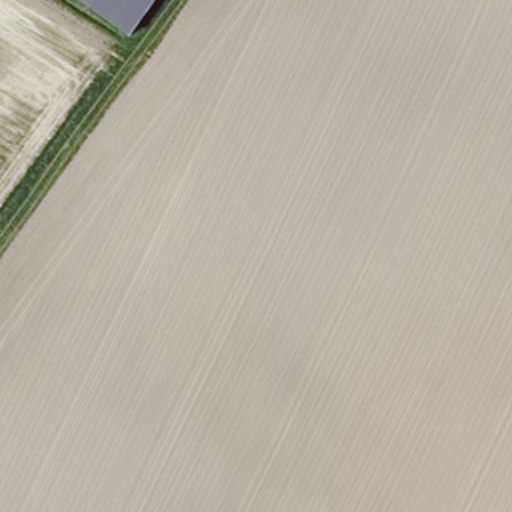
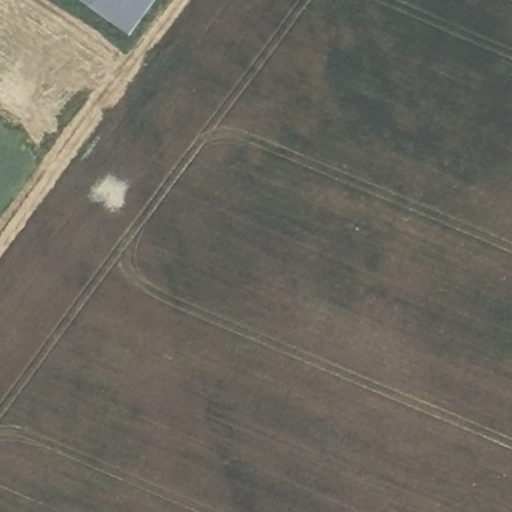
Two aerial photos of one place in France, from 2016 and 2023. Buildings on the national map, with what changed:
unchanged [(133,39),(73,0),(161,0),(133,39)]

